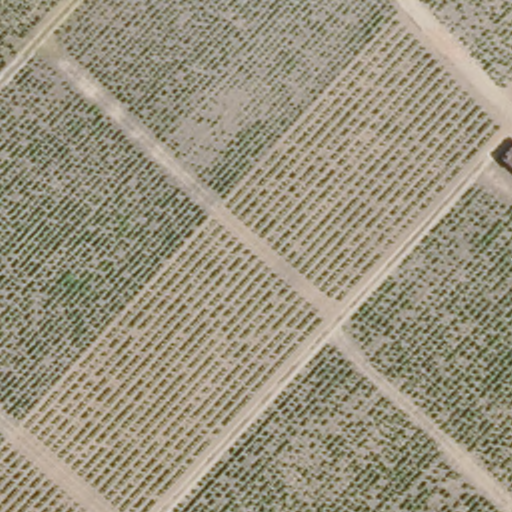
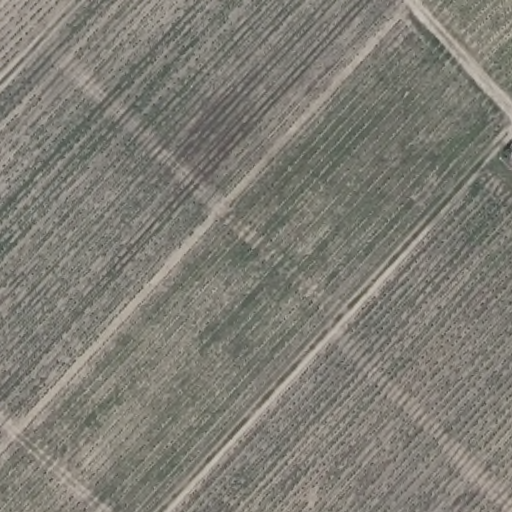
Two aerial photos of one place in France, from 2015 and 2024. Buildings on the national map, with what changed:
unchanged [(500,154),(512,141),(512,165),(500,154)]

